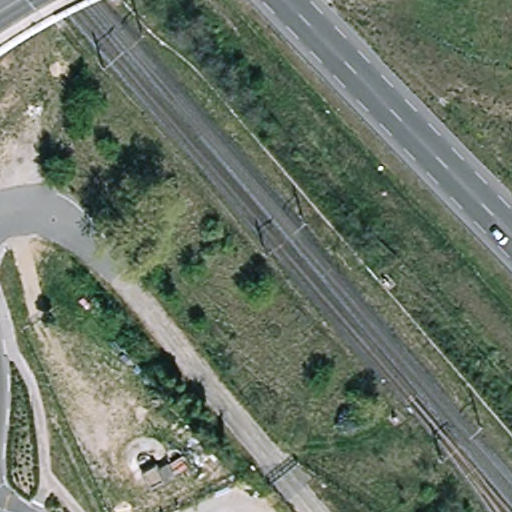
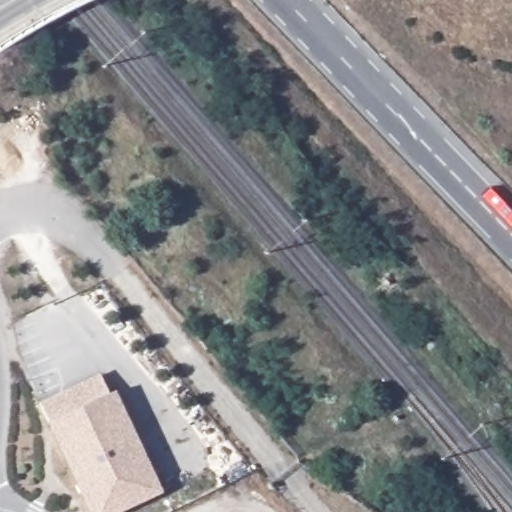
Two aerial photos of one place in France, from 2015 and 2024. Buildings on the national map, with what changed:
new [(48,423),(40,403),(100,375),(110,394),(116,392),(164,495),(126,512),(90,512),(48,423)]
demolished [(139,459),(141,459),(143,460),(144,462),(145,463),(145,465),(144,467),(143,469),(142,470),(140,471),(138,471),(136,470),(134,469),(133,467),(133,465),(133,463),(134,461),(135,460),(137,459),(139,459)]
demolished [(154,474),(162,488),(148,495),(142,480),(154,474)]

